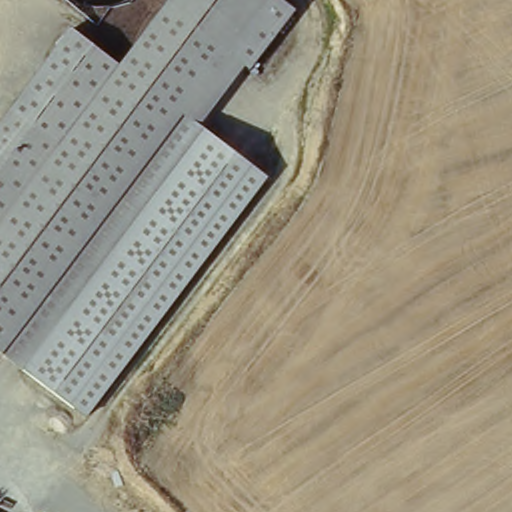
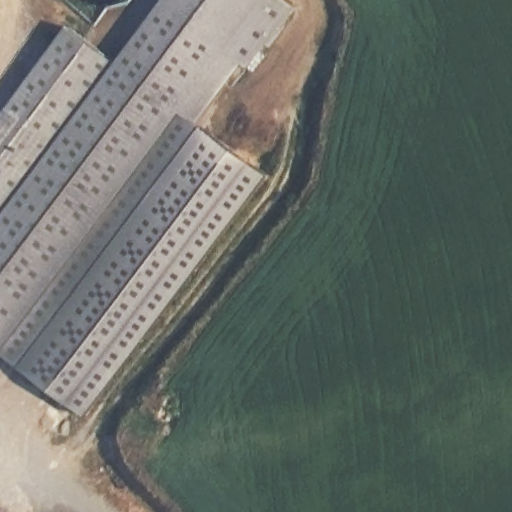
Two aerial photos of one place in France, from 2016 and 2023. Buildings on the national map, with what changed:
unchanged [(124,64),(172,0),(282,0),(294,9),(250,68),(229,53),(2,353),(0,351),(0,228),(122,66),(124,64)]
unchanged [(122,66),(0,228),(0,126),(72,29),(122,66)]
unchanged [(87,415),(2,353),(229,53),(245,65),(201,123),(267,174),(87,415)]

